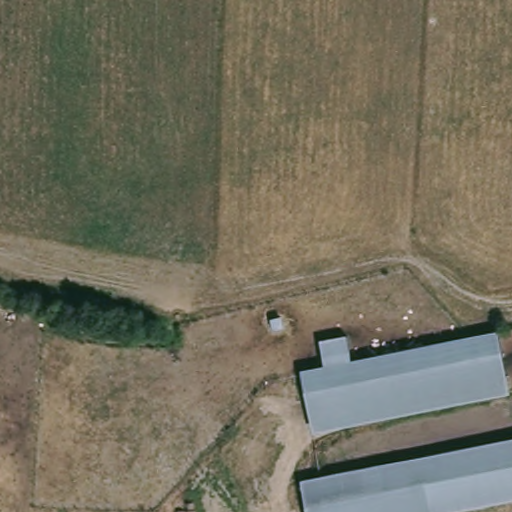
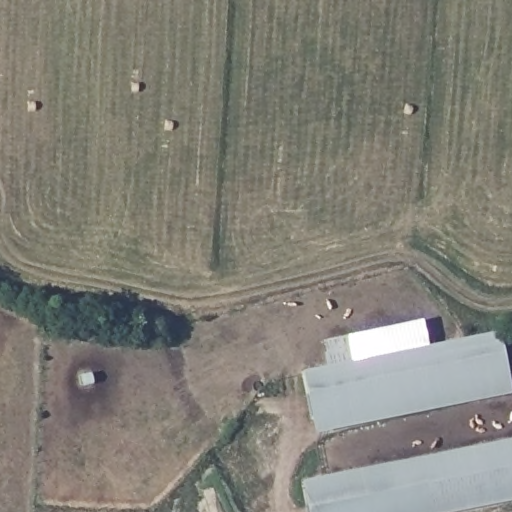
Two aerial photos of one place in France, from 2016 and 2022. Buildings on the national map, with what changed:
unchanged [(306,431),(295,369),(496,328),(507,393),(306,431)]
unchanged [(312,477),(512,450),(512,498),(409,512),(317,512),(312,477)]

